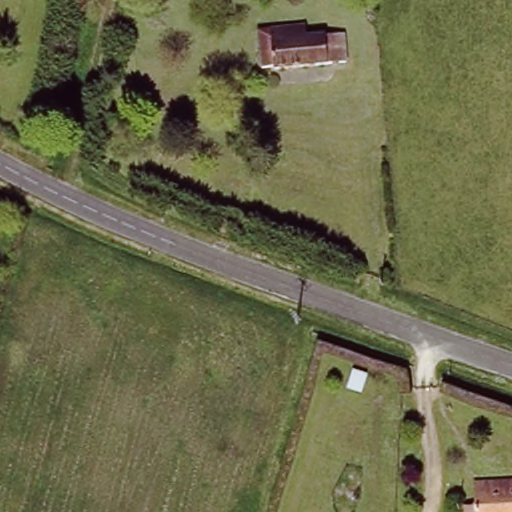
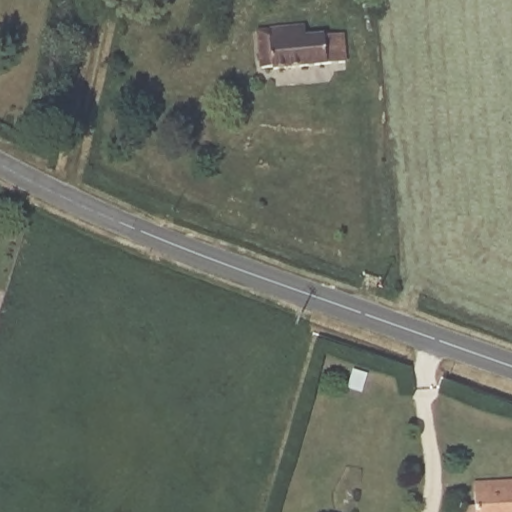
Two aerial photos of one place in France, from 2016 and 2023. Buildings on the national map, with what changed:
unchanged [(344,63),(326,64),(260,68),(258,27),(303,25),(304,33),(325,31),(342,31),(344,63)]
unchanged [(512,491),(512,512),(475,512),(475,492),(512,491)]

